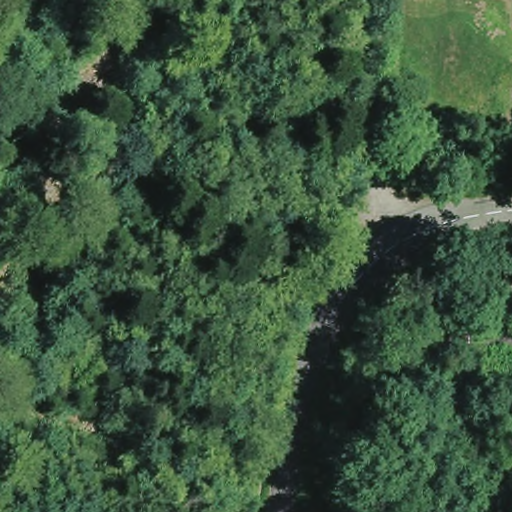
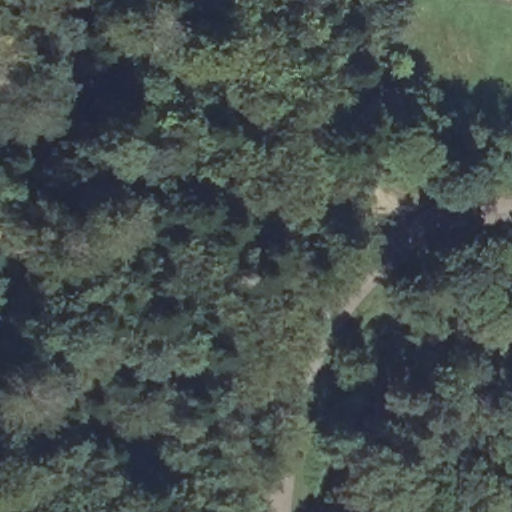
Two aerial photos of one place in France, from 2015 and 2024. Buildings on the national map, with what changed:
unchanged [(483,0),(508,0),(508,3),(483,0)]

